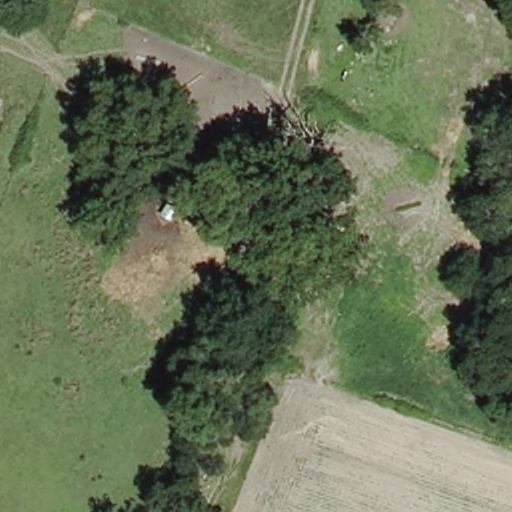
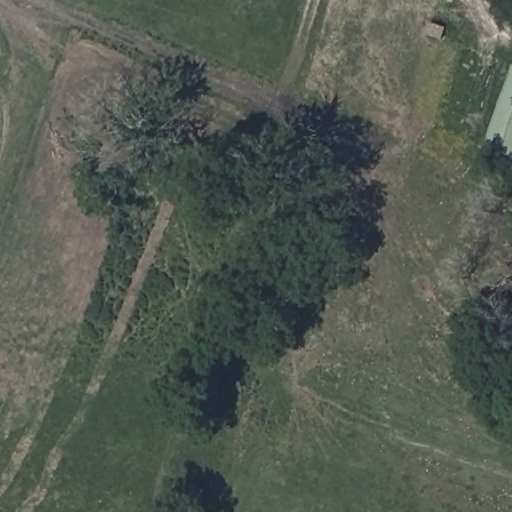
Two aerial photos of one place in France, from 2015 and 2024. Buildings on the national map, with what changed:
new [(512,156),(486,147),(512,70),(512,156)]

